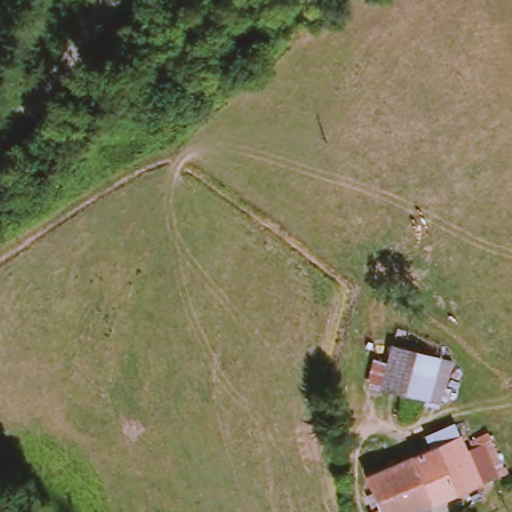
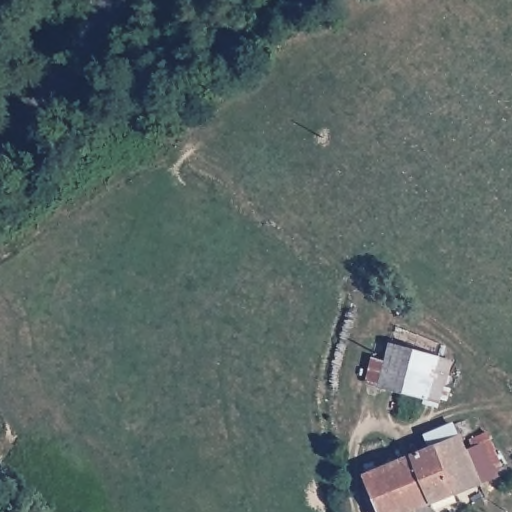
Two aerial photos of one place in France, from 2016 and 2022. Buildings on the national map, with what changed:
unchanged [(445,398),(433,396),(386,388),(391,347),(437,355),(451,358),(445,398)]
unchanged [(382,510),(371,478),(438,451),(433,440),(462,427),(467,439),(472,450),(489,442),(504,475),(486,483),(419,512),(377,512),(382,510)]

